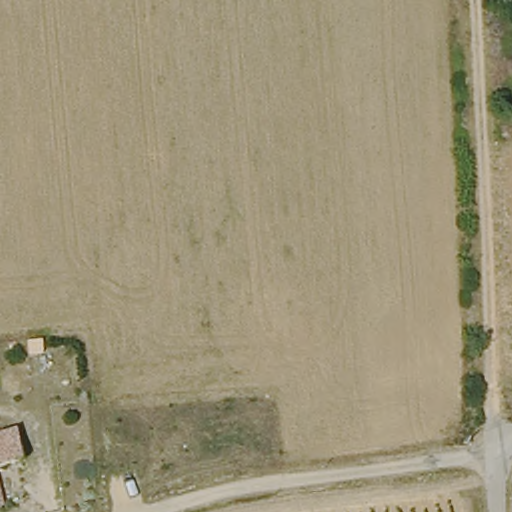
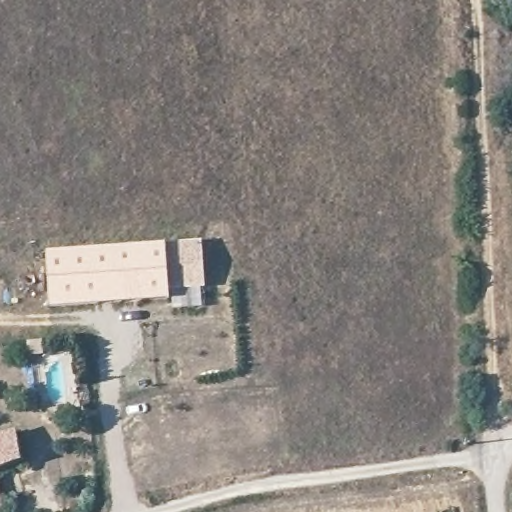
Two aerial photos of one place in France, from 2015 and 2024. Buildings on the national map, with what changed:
new [(52,306),(48,252),(167,244),(202,242),(205,287),(170,291),(172,298),(52,306)]
new [(50,356),(34,357),(33,343),(49,342),(50,356)]
unchanged [(12,428),(22,464),(0,472),(0,432),(12,428)]
unchanged [(7,509),(0,511),(0,491),(7,509)]

